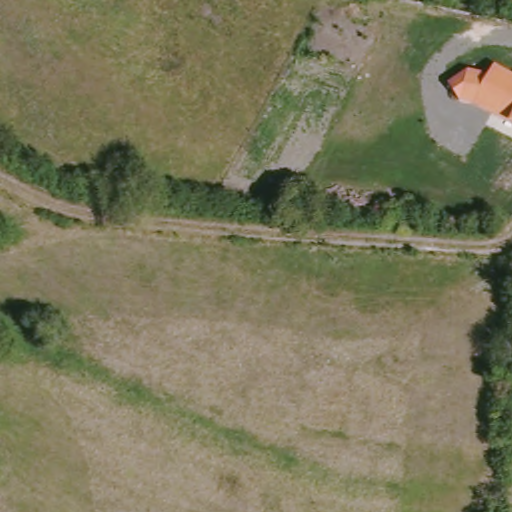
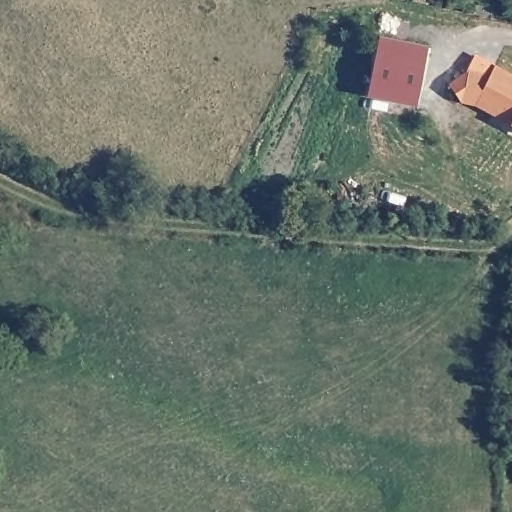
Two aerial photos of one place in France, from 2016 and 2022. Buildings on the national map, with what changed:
new [(368,97),(380,35),(427,45),(414,107),(368,97)]
unchanged [(474,106),(462,101),(460,103),(447,84),(467,70),(489,75),(495,64),(512,73),(512,126),(510,125),(474,106)]

